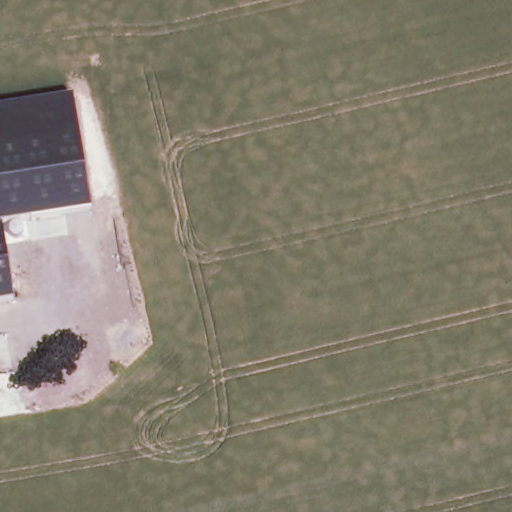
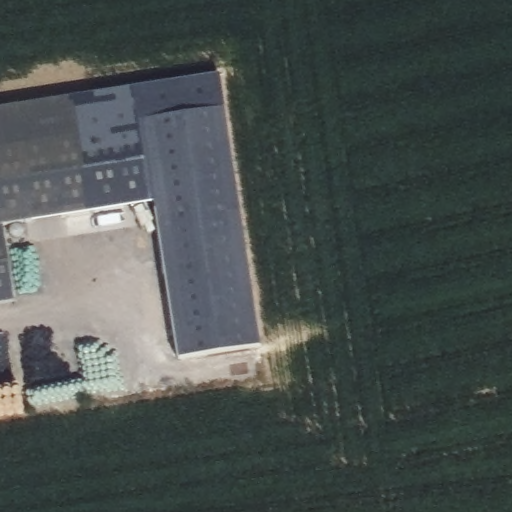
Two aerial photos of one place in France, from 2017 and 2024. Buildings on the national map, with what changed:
new [(219,75),(260,347),(177,360),(153,204),(90,212),(73,99),(219,75)]
unchanged [(2,230),(14,305),(0,307),(0,110),(73,99),(91,217),(2,230)]

